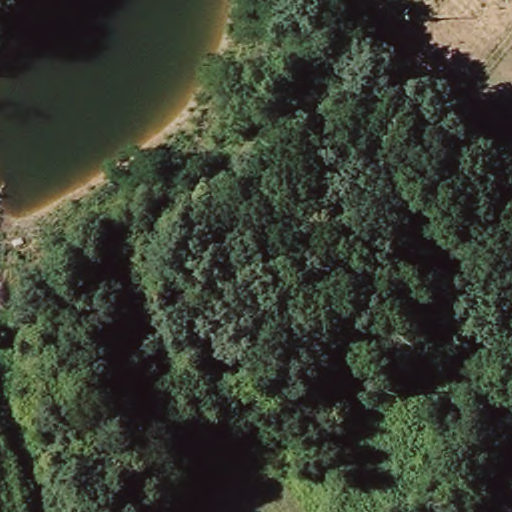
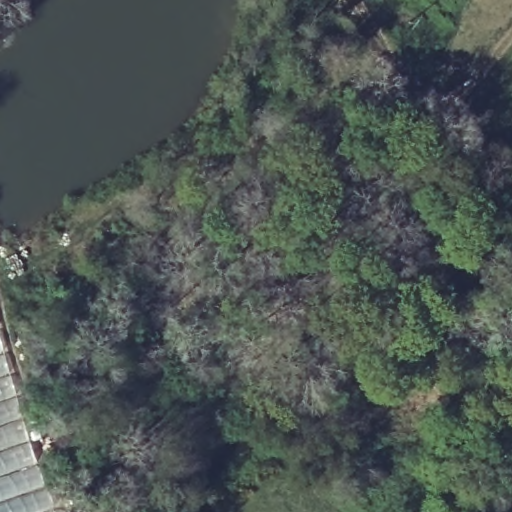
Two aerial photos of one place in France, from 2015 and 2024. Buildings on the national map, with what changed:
new [(33,452),(56,512),(0,512),(0,337),(33,452)]

